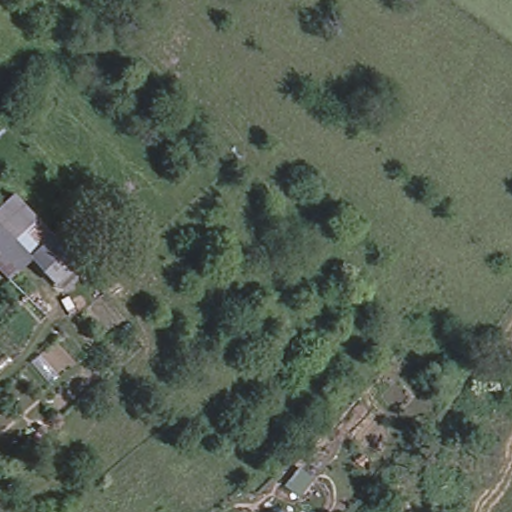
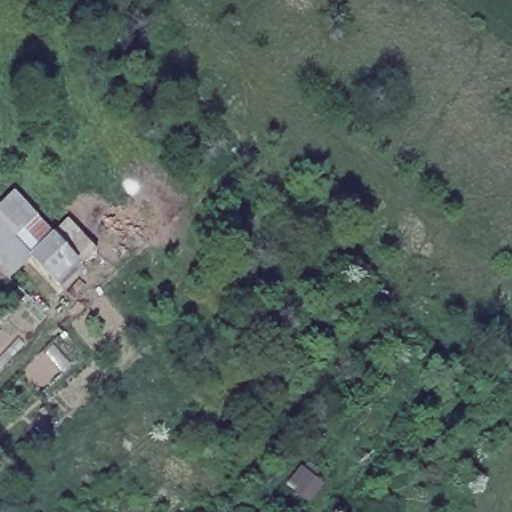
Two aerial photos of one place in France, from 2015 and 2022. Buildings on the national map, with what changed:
unchanged [(51,231),(30,250),(4,275),(0,271),(0,199),(10,189),(51,231)]
unchanged [(76,257),(54,277),(30,250),(51,231),(76,257)]

